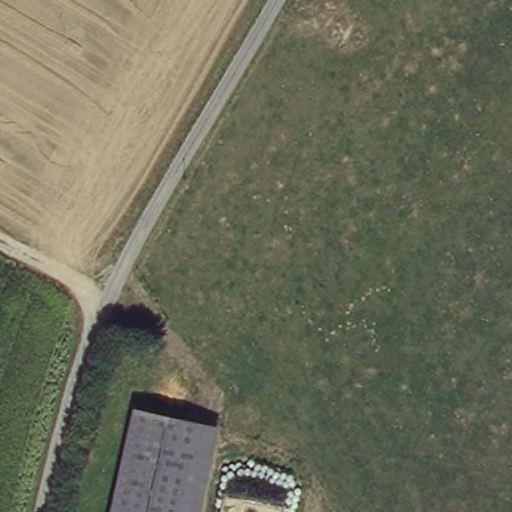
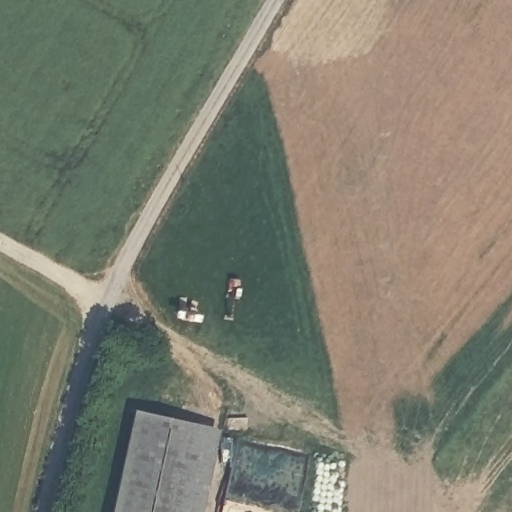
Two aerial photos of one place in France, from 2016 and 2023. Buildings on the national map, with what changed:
unchanged [(214,425),(196,512),(111,512),(132,410),(214,425)]

